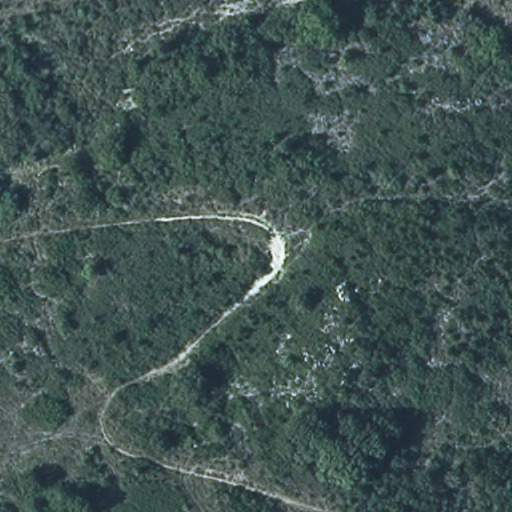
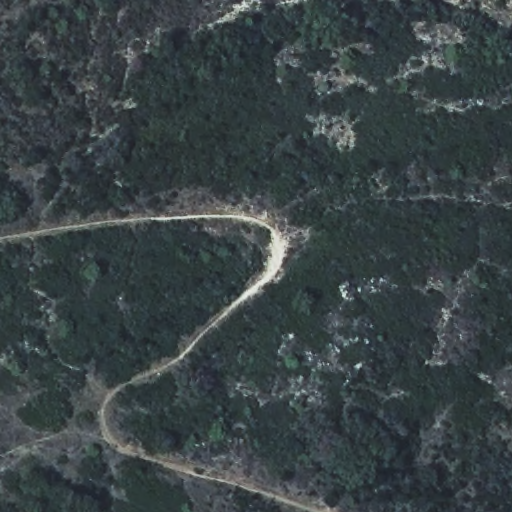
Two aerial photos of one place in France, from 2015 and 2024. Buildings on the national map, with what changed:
unchanged [(130,91),(133,111),(120,114),(117,93),(130,91)]

